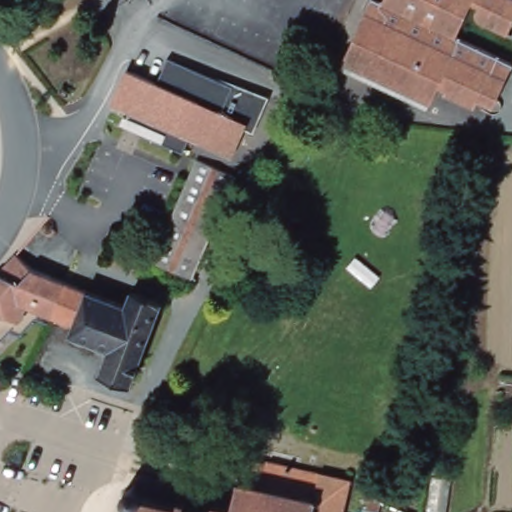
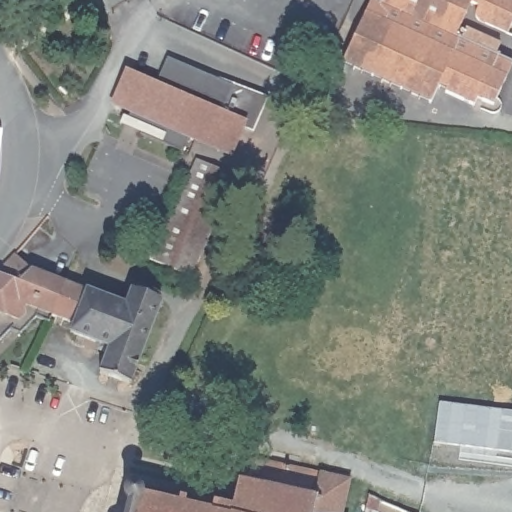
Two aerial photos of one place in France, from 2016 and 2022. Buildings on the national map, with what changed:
unchanged [(478,21),(476,18),(476,15),(478,10),(481,8),(473,5),(460,36),(512,62),(512,71),(496,107),(480,99),(476,106),(447,92),(449,88),(441,85),(433,103),(345,62),(373,0),(380,0),(384,2),(385,0),(512,0),(512,30),(510,35),(478,21)]
unchanged [(131,113),(111,104),(127,68),(161,82),(170,60),(269,96),(256,135),(244,131),(233,158),(189,139),(184,150),(126,125),(131,113)]
unchanged [(235,176),(192,275),(146,255),(155,237),(164,241),(197,160),(235,176)]
unchanged [(25,268),(65,282),(54,313),(51,320),(37,315),(21,331),(10,327),(1,336),(0,336),(0,268),(12,254),(25,268)]
unchanged [(127,304),(132,290),(162,301),(132,383),(102,371),(111,345),(72,328),(75,320),(54,313),(65,282),(127,304)]
new [(438,402),(512,412),(512,451),(433,441),(438,402)]
unchanged [(262,483),(267,463),(268,460),(275,461),(316,470),(327,473),(352,478),(350,485),(344,512),(130,512),(132,501),(127,490),(139,483),(144,492),(179,502),(180,496),(192,498),(190,504),(214,510),(216,501),(235,506),(241,479),(262,483)]
unchanged [(370,506),(357,499),(362,487),(371,490),(373,494),(370,506)]

